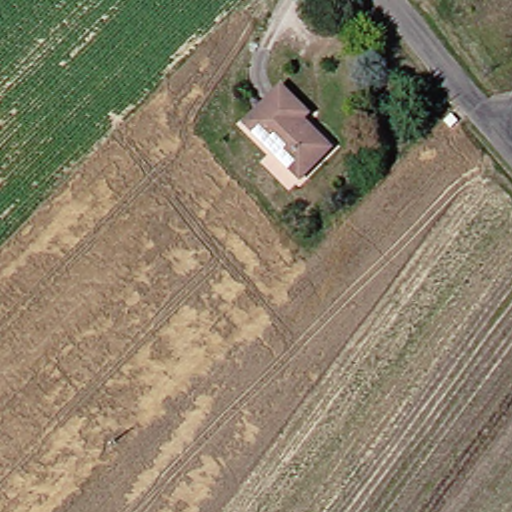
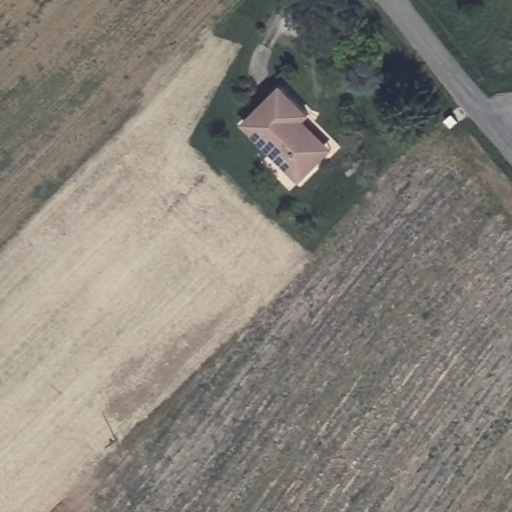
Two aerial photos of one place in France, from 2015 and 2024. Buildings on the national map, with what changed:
unchanged [(329,146),(305,173),(246,120),(281,81),(307,105),(303,109),(335,139),(329,146)]

